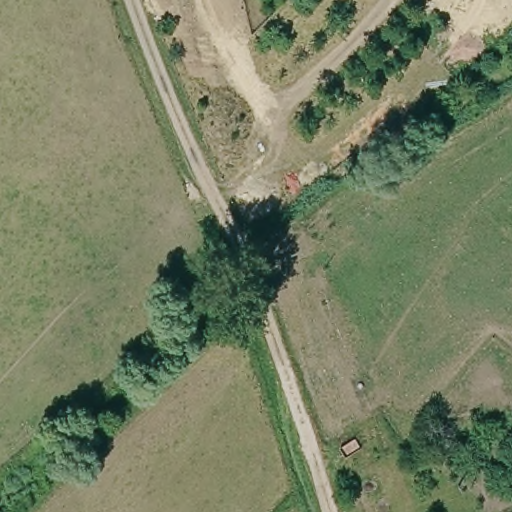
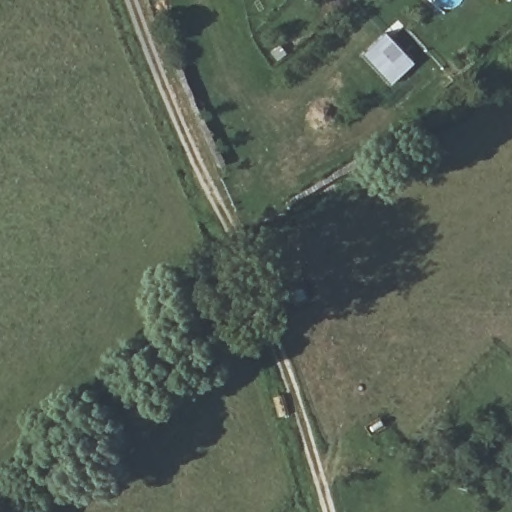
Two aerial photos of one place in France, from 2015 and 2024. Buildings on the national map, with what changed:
new [(385,32),(412,64),(388,85),(360,54),(385,32)]

